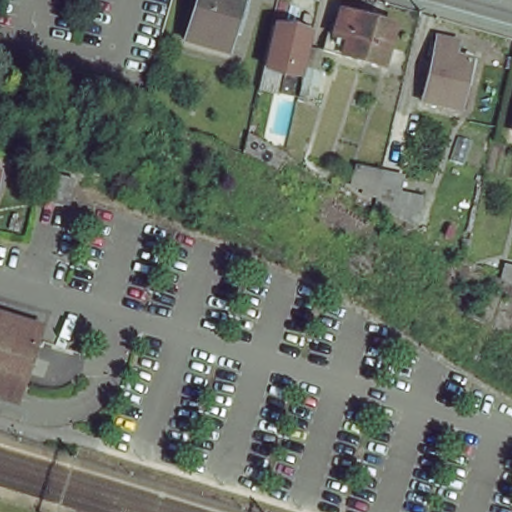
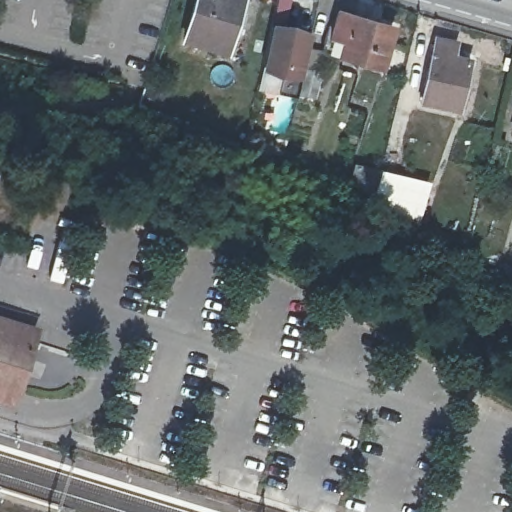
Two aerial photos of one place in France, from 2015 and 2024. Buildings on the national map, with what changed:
unchanged [(240,39),(234,38),(228,56),(187,44),(200,0),(252,0),(240,39)]
unchanged [(392,74),(332,56),(340,28),(345,30),(351,19),(380,27),(380,32),(402,38),(392,74)]
unchanged [(315,100),(300,97),(299,99),(280,93),(282,75),(263,69),(267,49),(271,31),(312,41),(307,63),(305,70),(321,75),(315,100)]
unchanged [(455,65),(471,70),(461,118),(424,109),(437,47),(458,52),(455,65)]
unchanged [(276,167),(245,149),(251,134),(285,153),(276,167)]
unchanged [(362,192),(363,187),(352,184),(358,164),(381,170),(401,175),(399,190),(422,197),(417,215),(374,202),(375,196),(362,192)]
unchanged [(1,182),(0,186),(0,181),(1,182)]
unchanged [(45,332),(18,416),(0,410),(0,319),(45,332)]

